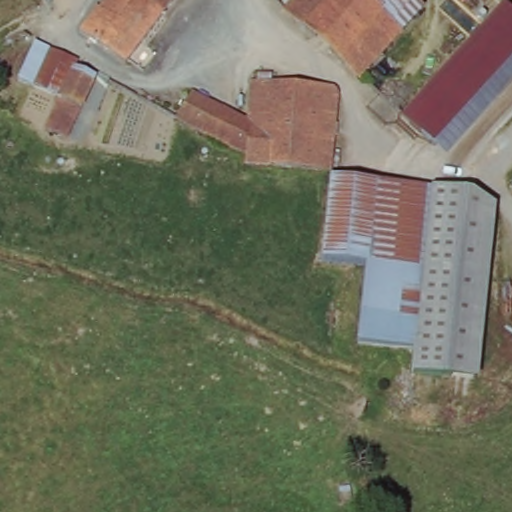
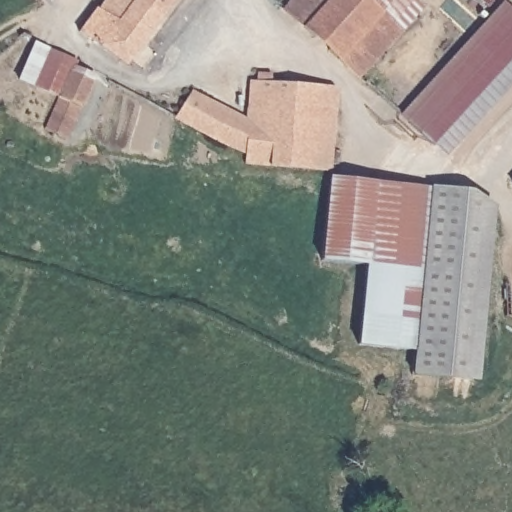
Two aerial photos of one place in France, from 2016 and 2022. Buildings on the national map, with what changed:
unchanged [(47,0),(49,0),(48,1),(47,0)]
unchanged [(130,61),(90,31),(111,0),(150,0),(166,11),(130,61)]
unchanged [(150,0),(174,0),(166,11),(150,0)]
unchanged [(298,0),(372,0),(406,31),(365,76),(293,6),(298,0)]
unchanged [(418,0),(427,8),(406,31),(372,0),(418,0)]
unchanged [(505,0),(512,7),(512,86),(449,155),(402,113),(504,0),(505,0)]
unchanged [(33,85),(50,50),(76,63),(71,73),(59,96),(33,85)]
unchanged [(59,96),(71,73),(91,82),(62,139),(42,128),(54,108),(59,96)]
unchanged [(330,174),(243,168),(245,157),(172,118),(193,89),(247,119),(250,80),(271,82),(339,89),(330,174)]
unchanged [(366,264),(323,261),(330,179),(374,183),(366,264)]
unchanged [(470,191),(494,203),(481,381),(418,376),(417,350),(360,347),(366,264),(374,183),(470,191)]

